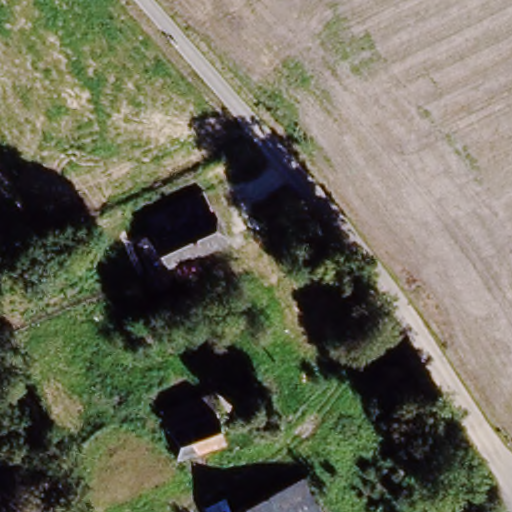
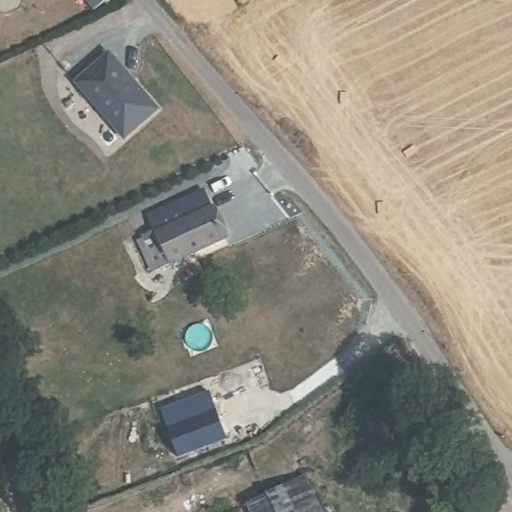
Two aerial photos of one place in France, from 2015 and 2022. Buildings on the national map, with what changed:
new [(160,110),(125,139),(75,81),(109,53),(160,110)]
unchanged [(205,187),(226,236),(154,268),(140,238),(174,223),(166,204),(205,187)]
unchanged [(404,442),(368,387),(386,374),(422,430),(404,442)]
unchanged [(169,429),(164,412),(212,394),(227,441),(198,452),(178,459),(169,429)]
unchanged [(305,473),(325,512),(241,512),(239,506),(305,473)]

